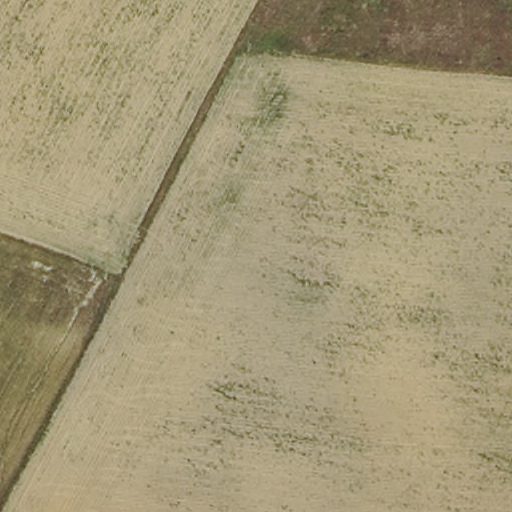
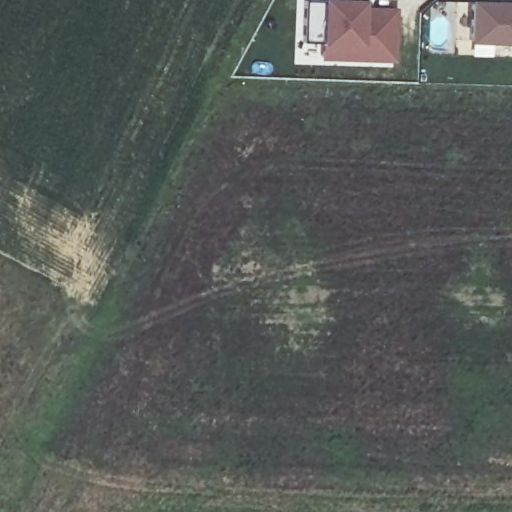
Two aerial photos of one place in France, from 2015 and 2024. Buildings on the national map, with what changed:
new [(314,0),(365,0),(365,8),(396,7),(395,61),(320,59),(321,41),(305,41),(306,0),(314,0)]
new [(512,1),(512,44),(467,42),(469,0),(491,0),(512,1)]

